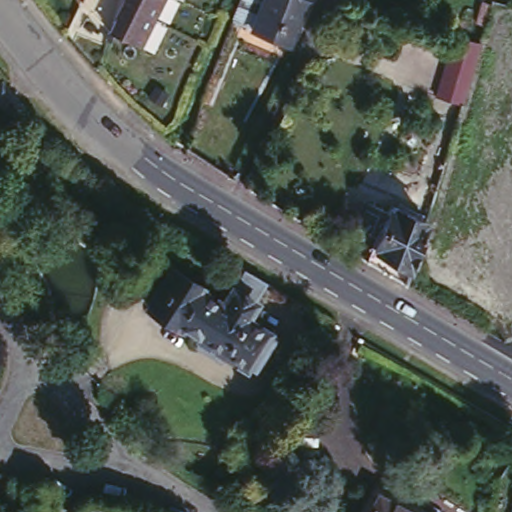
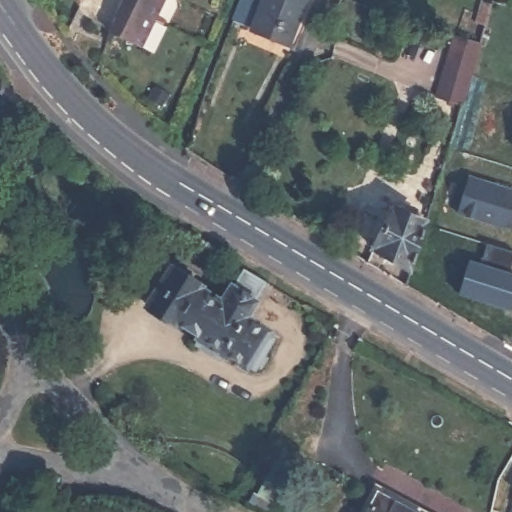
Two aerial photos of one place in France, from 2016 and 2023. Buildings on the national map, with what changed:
unchanged [(166,0),(149,42),(107,25),(119,0),(166,0)]
unchanged [(234,20),(242,0),(309,0),(291,45),(234,20)]
unchanged [(489,25),(476,21),(482,0),(495,4),(489,25)]
unchanged [(343,6),(355,12),(351,22),(338,17),(343,6)]
unchanged [(482,40),(463,99),(436,91),(456,31),(482,40)]
new [(512,188),(512,233),(451,214),(465,175),(512,188)]
unchanged [(393,200),(427,215),(411,266),(374,242),(393,200)]
unchanged [(235,260),(239,262),(235,268),(225,261),(229,256),(235,260)]
new [(512,305),(457,289),(467,256),(512,270),(512,305)]
unchanged [(194,340),(199,334),(146,297),(171,262),(199,282),(198,284),(222,301),(245,266),(268,280),(244,315),(246,315),(274,336),(263,352),(265,355),(259,365),(255,364),(252,367),(244,362),(242,365),(220,350),(215,356),(194,340)]
unchanged [(379,493),(412,512),(369,512),(379,493)]

